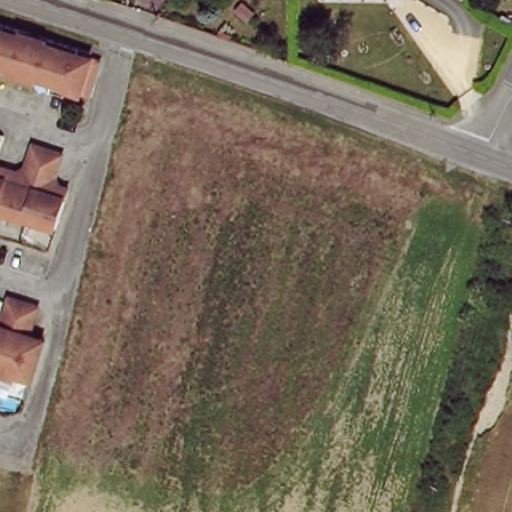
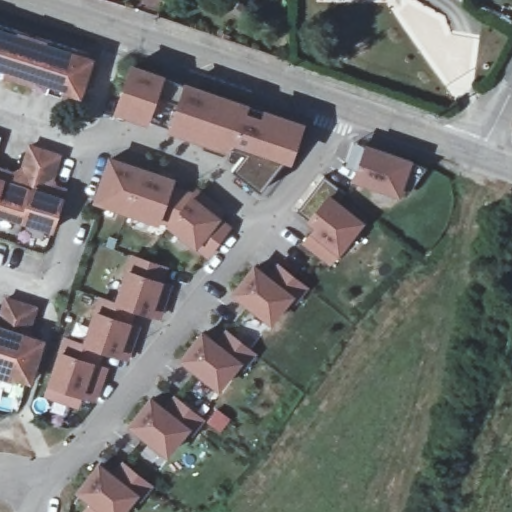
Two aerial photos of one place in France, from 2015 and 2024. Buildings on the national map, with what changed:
unchanged [(15,38),(44,47),(46,41),(74,51),(72,56),(88,61),(77,95),(62,90),(63,87),(35,78),(33,83),(3,73),(5,68),(0,67),(0,26),(16,32),(15,38)]
new [(163,75),(183,82),(263,109),(306,123),(291,164),(282,162),(259,189),(234,169),(247,154),(231,148),(230,153),(168,131),(148,125),(114,113),(131,64),(163,75)]
new [(365,146),(413,161),(412,163),(427,168),(409,198),(401,195),(400,198),(353,181),(356,169),(346,165),(354,142),(365,146)]
new [(176,179),(173,187),(193,192),(196,187),(226,211),(219,218),(232,227),(208,259),(196,251),(165,228),(92,204),(108,156),(176,179)]
new [(309,234),(314,227),(306,222),(297,212),(324,180),(343,194),(336,200),(365,223),(339,256),(331,267),(302,245),(309,234)]
new [(168,267),(163,282),(172,286),(161,320),(151,317),(135,312),(131,323),(141,327),(130,362),(119,359),(101,353),(95,364),(108,369),(96,402),(83,398),(80,409),(44,398),(47,385),(58,350),(63,335),(83,341),(93,310),(98,297),(114,301),(130,255),(168,267)]
new [(253,264),(268,274),(278,264),(310,287),(296,305),(291,301),(271,327),(231,295),(253,264)]
unchanged [(10,296),(38,305),(30,330),(33,335),(44,339),(33,376),(18,371),(16,375),(0,369),(0,321),(1,320),(10,296)]
new [(201,331),(215,341),(226,330),(258,353),(245,370),(240,367),(218,393),(178,362),(201,331)]
new [(150,397),(163,408),(174,396),(205,419),(191,438),(188,435),(168,459),(126,427),(150,397)]
new [(123,461),(153,485),(141,502),(136,500),(126,512),(83,512),(88,505),(74,493),(98,463),(112,473),(123,461)]

